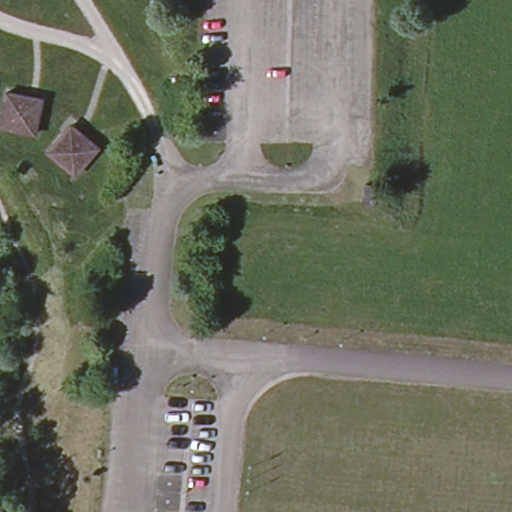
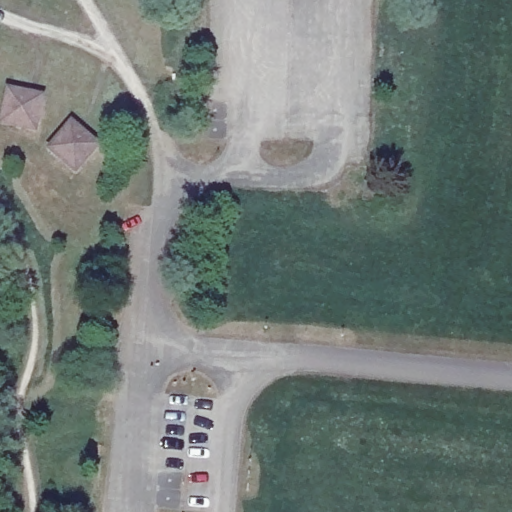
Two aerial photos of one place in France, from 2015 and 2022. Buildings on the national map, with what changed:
unchanged [(1,124),(8,87),(25,91),(43,94),(41,107),(36,130),(1,124)]
unchanged [(72,121),(87,133),(99,144),(76,172),(48,148),(64,130),(72,121)]
unchanged [(377,184),(375,202),(362,201),(364,183),(377,184)]

